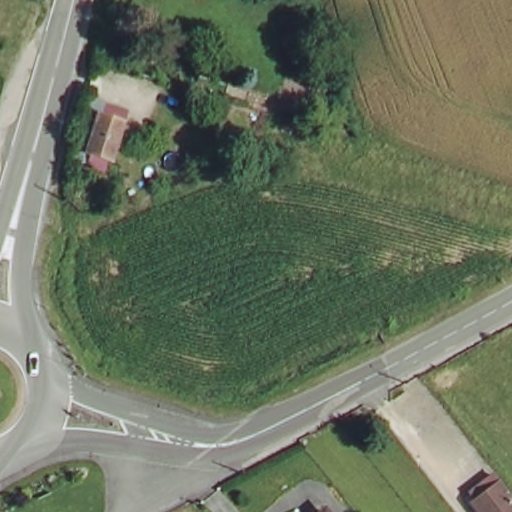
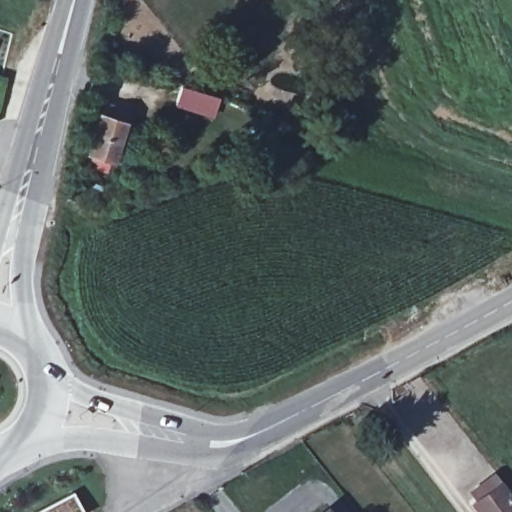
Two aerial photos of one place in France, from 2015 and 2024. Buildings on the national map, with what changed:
unchanged [(111,168),(95,165),(95,151),(104,117),(125,122),(111,168)]
unchanged [(486,491),(482,483),(494,473),(512,498),(512,512),(482,512),(474,500),(486,491)]
new [(84,512),(34,512),(73,492),(84,512)]
unchanged [(332,512),(326,512),(330,509),(332,512)]

